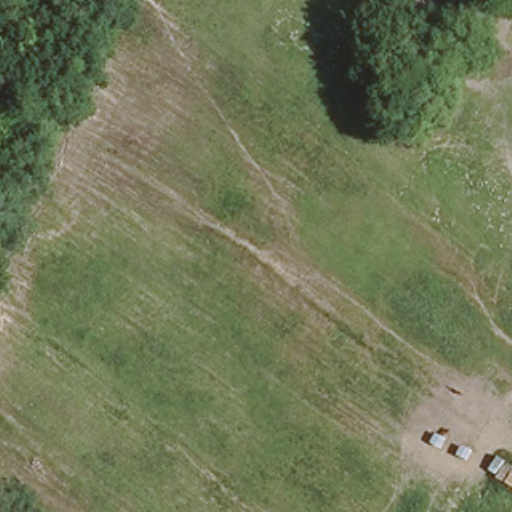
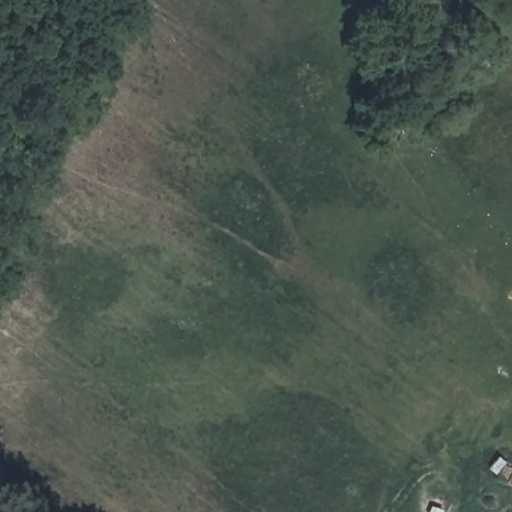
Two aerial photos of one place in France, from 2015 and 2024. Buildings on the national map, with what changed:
unchanged [(512,488),(497,478),(505,464),(512,469),(512,488)]

